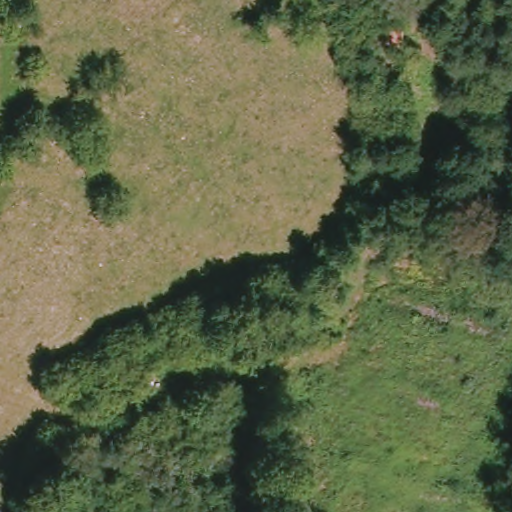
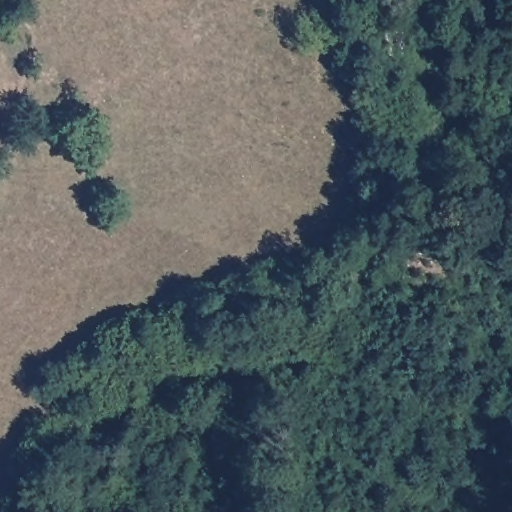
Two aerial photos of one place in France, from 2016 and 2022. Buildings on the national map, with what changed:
unchanged [(406,28),(405,50),(401,54),(396,55),(391,54),(384,29),(406,28)]

